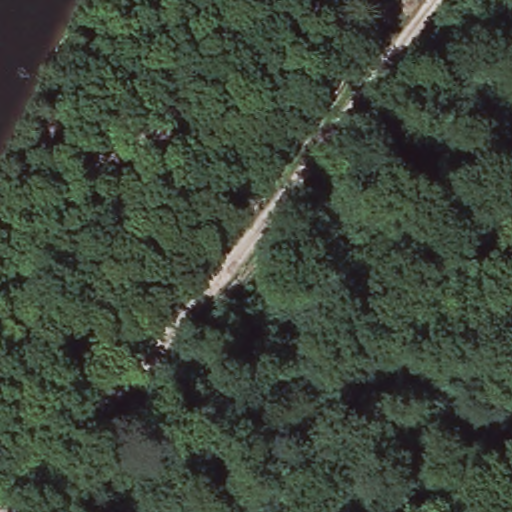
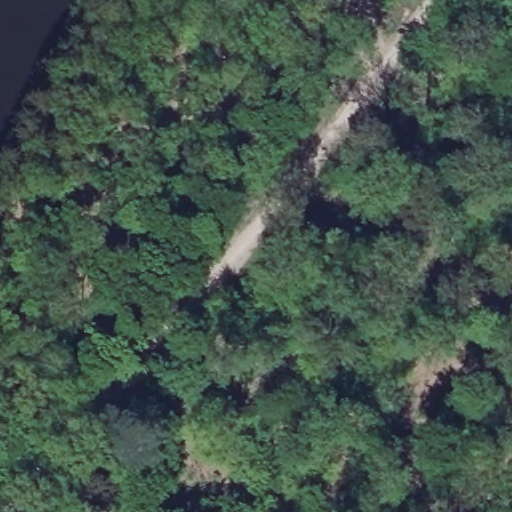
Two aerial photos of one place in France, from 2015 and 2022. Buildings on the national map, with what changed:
[]

